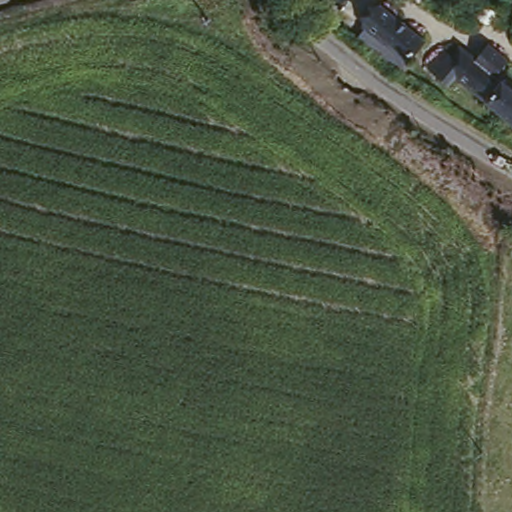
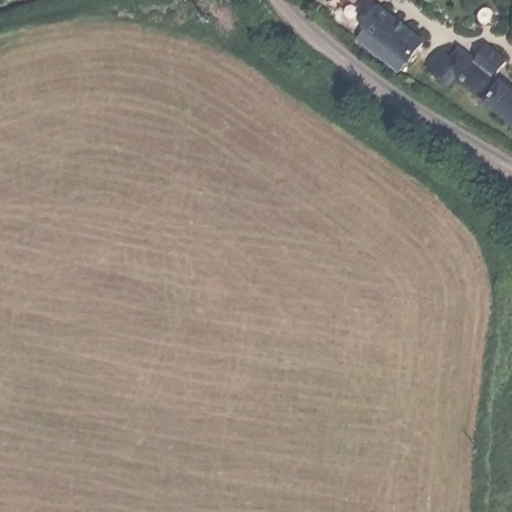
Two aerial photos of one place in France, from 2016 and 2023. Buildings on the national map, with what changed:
unchanged [(421,39),(404,59),(365,26),(382,6),(421,39)]
unchanged [(452,93),(436,81),(428,74),(444,54),(450,59),(461,43),(481,57),(493,43),(512,56),(512,61),(503,73),(512,79),(512,120),(460,82),(452,93)]

